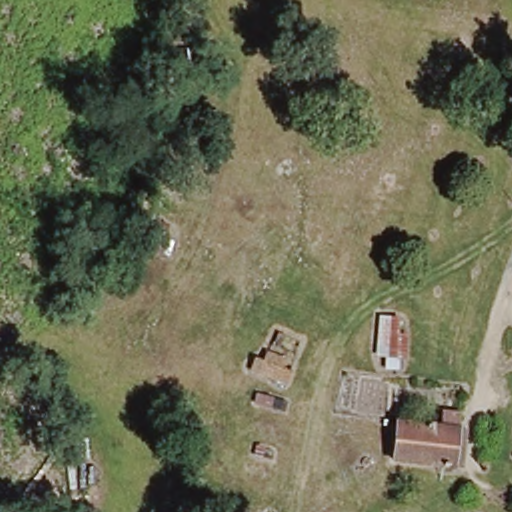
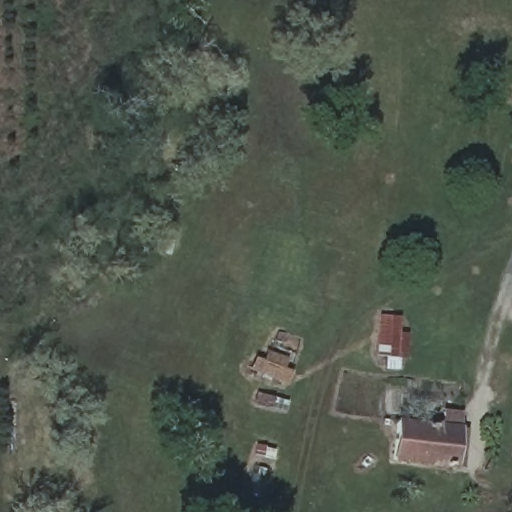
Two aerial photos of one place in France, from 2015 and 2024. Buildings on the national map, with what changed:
unchanged [(401,316),(401,330),(410,331),(408,359),(402,359),(398,371),(388,371),(387,359),(378,357),(381,315),(401,316)]
unchanged [(256,377),(260,365),(265,350),(296,356),(291,384),(256,377)]
unchanged [(396,465),(401,420),(461,426),(456,472),(396,465)]

